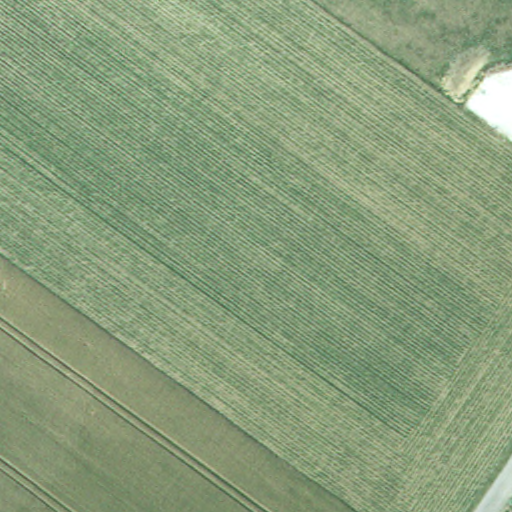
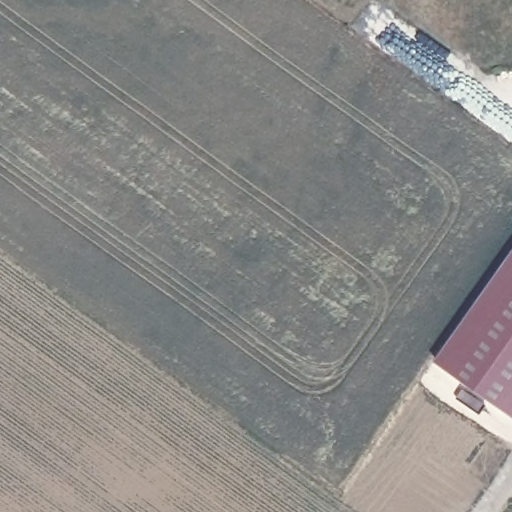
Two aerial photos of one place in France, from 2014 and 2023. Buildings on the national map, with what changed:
new [(439,362),(512,259),(512,414),(439,362)]

